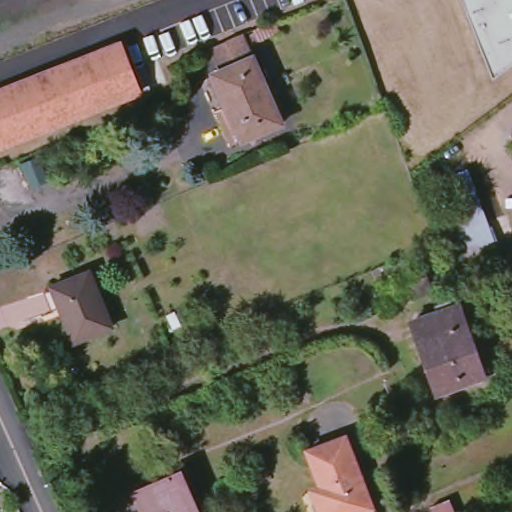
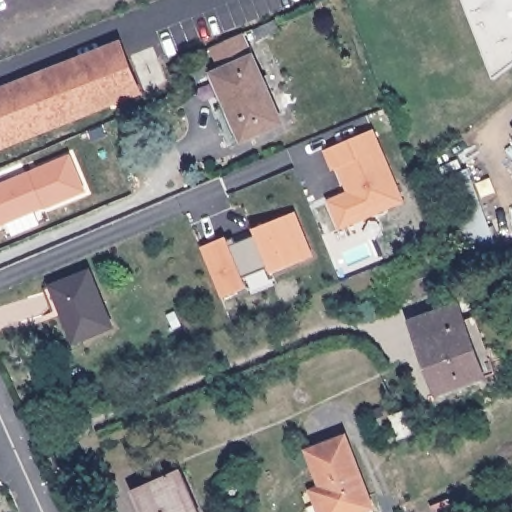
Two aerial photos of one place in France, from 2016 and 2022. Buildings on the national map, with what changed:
unchanged [(463,0),(512,0),(512,66),(493,80),(463,0)]
unchanged [(229,107),(214,74),(221,71),(211,47),(243,33),(283,122),(243,140),(233,144),(219,111),(229,107)]
unchanged [(126,44),(145,92),(0,149),(0,93),(126,44)]
new [(405,203),(339,230),(326,201),(346,193),(336,168),(332,169),(324,150),(375,128),(405,203)]
unchanged [(466,170),(496,250),(466,262),(436,181),(466,170)]
new [(316,256),(274,273),(269,264),(243,276),(246,288),(221,301),(201,247),(227,237),(229,241),(234,237),(237,242),(255,236),(253,230),(298,211),(316,256)]
unchanged [(52,287),(90,272),(113,327),(75,342),(52,287)]
unchanged [(413,322),(458,305),(484,377),(439,393),(413,322)]
unchanged [(308,452),(346,437),(373,507),(360,512),(321,512),(317,502),(313,492),(323,488),(308,452)]
unchanged [(181,471),(199,512),(144,512),(135,492),(181,471)]

